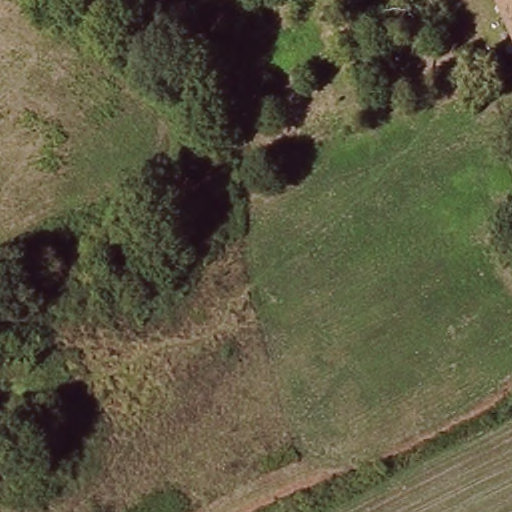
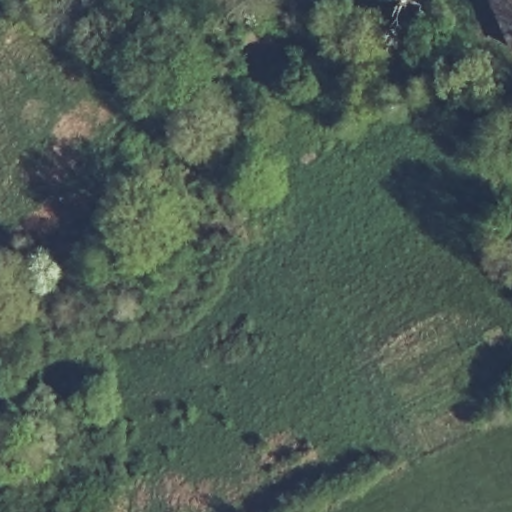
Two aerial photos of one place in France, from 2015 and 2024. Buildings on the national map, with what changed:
unchanged [(512,0),(512,40),(489,6),(500,0),(512,0)]

